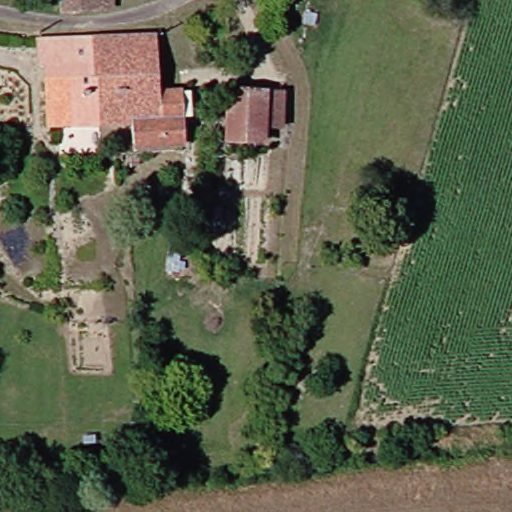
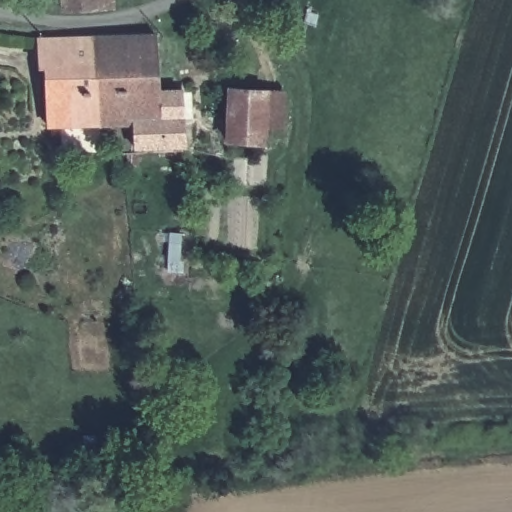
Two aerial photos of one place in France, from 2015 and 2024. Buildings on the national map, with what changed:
unchanged [(101,0),(101,7),(56,10),(56,0),(101,0)]
unchanged [(158,145),(124,146),(122,125),(96,126),(39,129),(35,35),(60,34),(90,32),(122,31),(149,30),(150,53),(152,95),(175,95),(177,125),(178,145),(158,145)]
unchanged [(265,96),(257,144),(216,137),(222,91),(265,96)]

